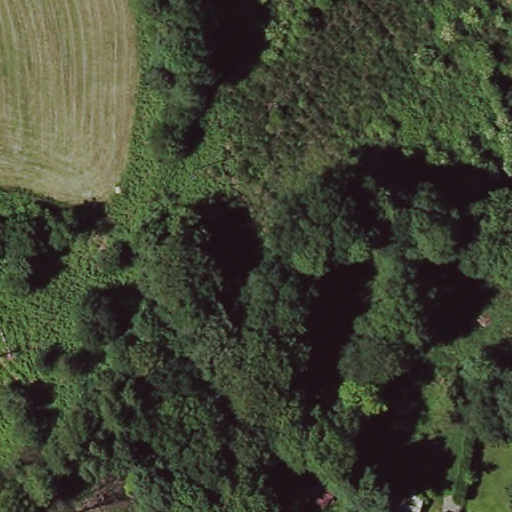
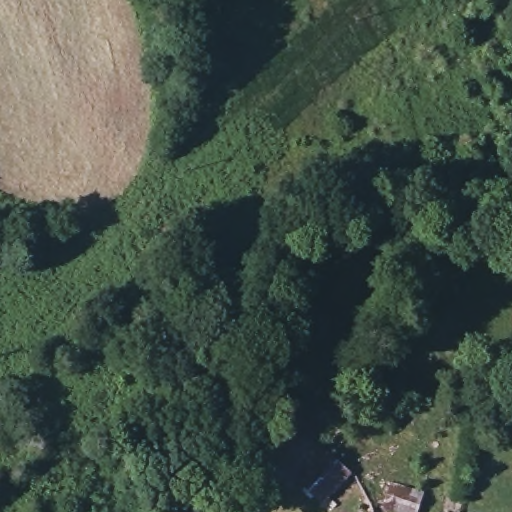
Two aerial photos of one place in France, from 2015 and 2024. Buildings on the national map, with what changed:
unchanged [(359,467),(347,479),(326,501),(302,478),(330,446),(359,467)]
unchanged [(418,512),(397,512),(382,508),(389,485),(422,494),(418,512)]

